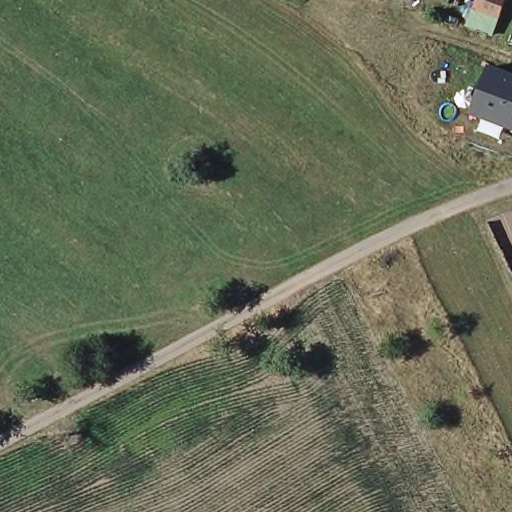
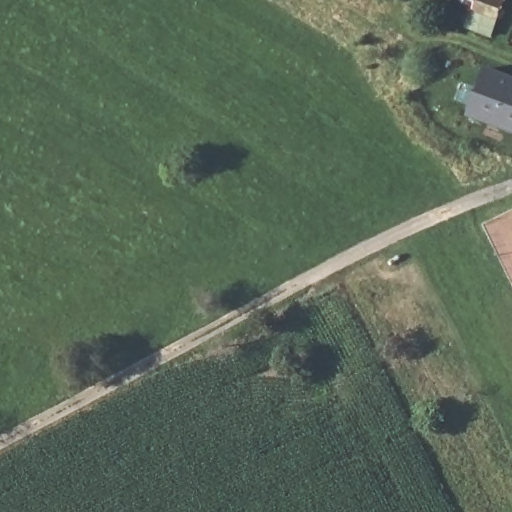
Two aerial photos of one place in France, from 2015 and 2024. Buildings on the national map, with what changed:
unchanged [(494,40),(462,29),(470,9),(474,9),(478,0),(512,0),(512,2),(494,40)]
unchanged [(512,78),(512,131),(470,115),(488,68),(512,78)]

